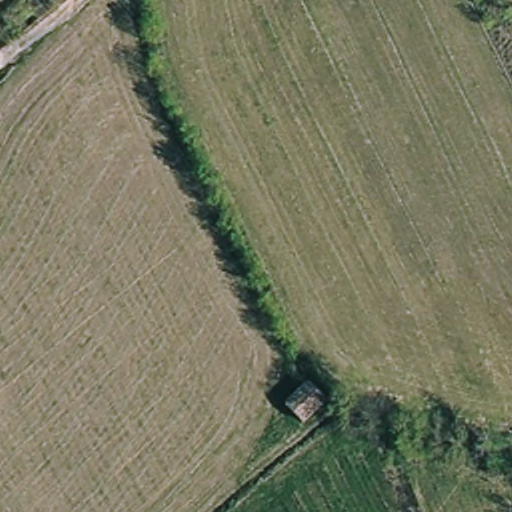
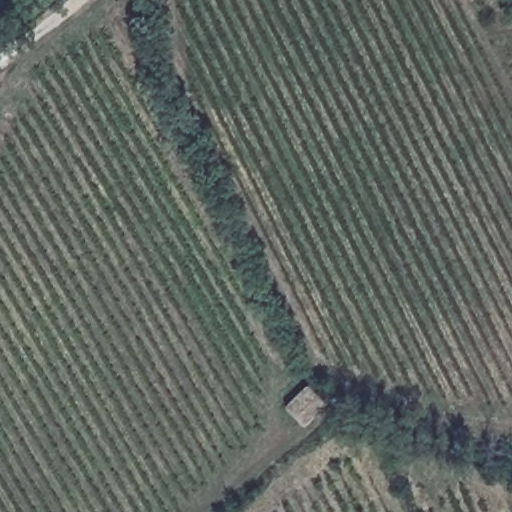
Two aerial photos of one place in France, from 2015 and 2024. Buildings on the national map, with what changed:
unchanged [(302,386),(319,404),(300,423),(282,405),(302,386)]

